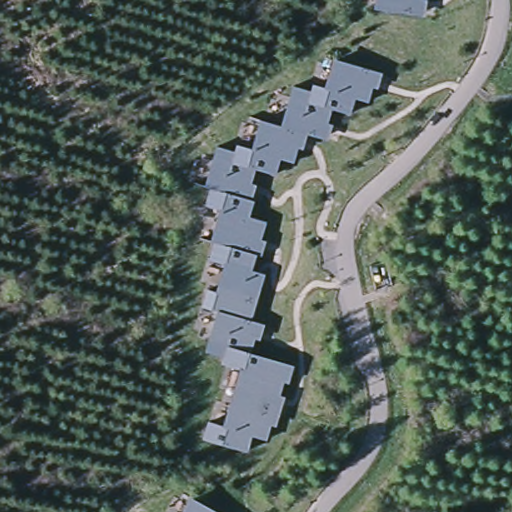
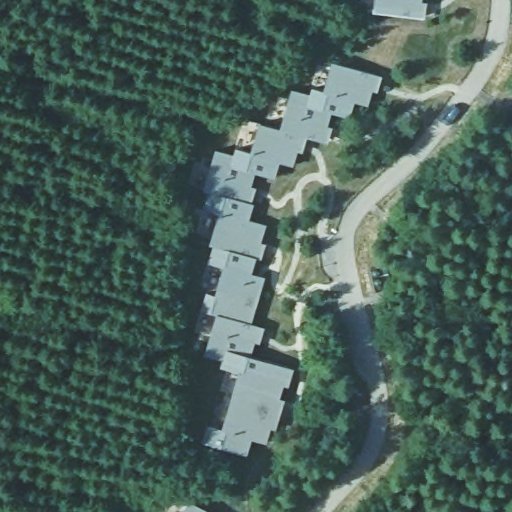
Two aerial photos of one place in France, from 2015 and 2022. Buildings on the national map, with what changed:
unchanged [(424,1),(428,3),(427,19),(378,11),(380,0),(424,0),(424,1)]
unchanged [(377,75),(369,107),(357,103),(352,119),(333,112),(328,127),(332,128),(326,144),(308,138),(303,152),(299,151),(294,169),(280,163),(276,179),(257,174),(253,187),(258,188),(252,203),(256,205),(251,221),(267,227),(254,274),(267,279),(253,324),(266,328),(261,346),(230,338),(227,351),(295,369),(290,387),(284,385),(283,397),(286,397),(277,428),(272,425),(267,444),(251,439),(246,455),(202,442),(208,425),(223,431),(240,372),(219,366),(221,359),(204,354),(216,311),(201,307),(206,292),(216,295),(226,264),(208,260),(222,213),(202,206),(208,191),(204,190),(217,150),(234,155),(238,146),(253,151),(261,122),(282,129),(293,89),(311,94),(313,87),(326,91),(334,61),(377,75)]
unchanged [(209,512),(184,512),(190,501),(209,512)]

